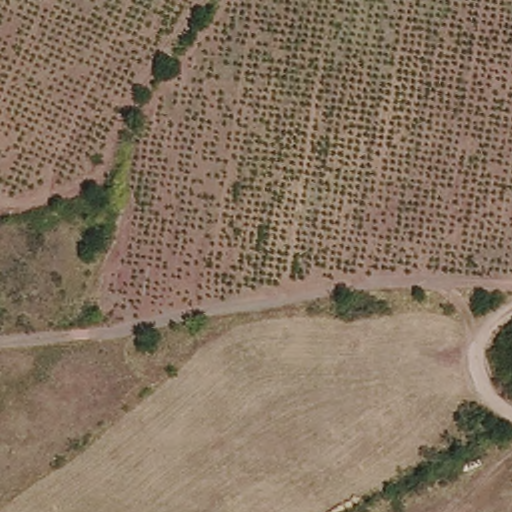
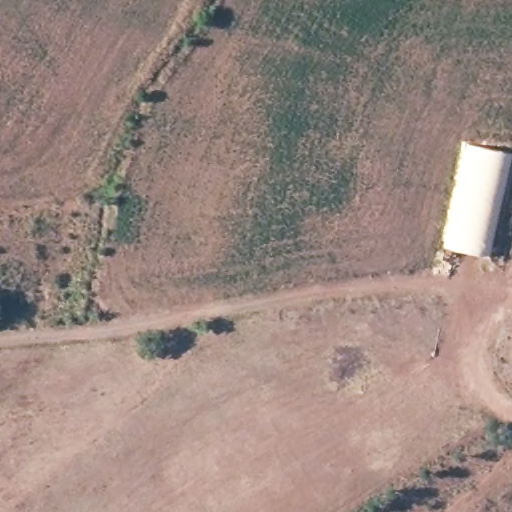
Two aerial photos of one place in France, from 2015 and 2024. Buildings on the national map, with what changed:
new [(448,211),(465,142),(512,152),(512,168),(492,256),(442,246),(448,211)]

